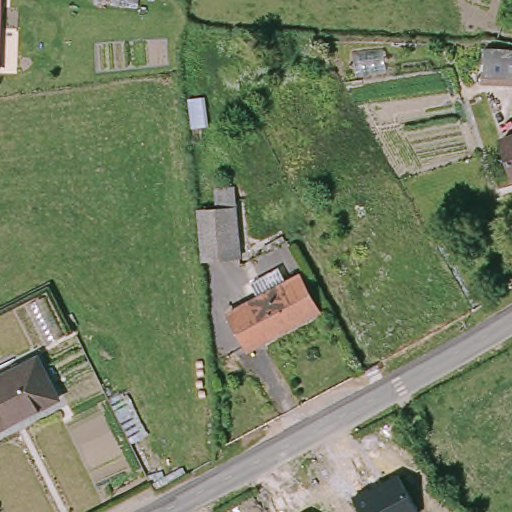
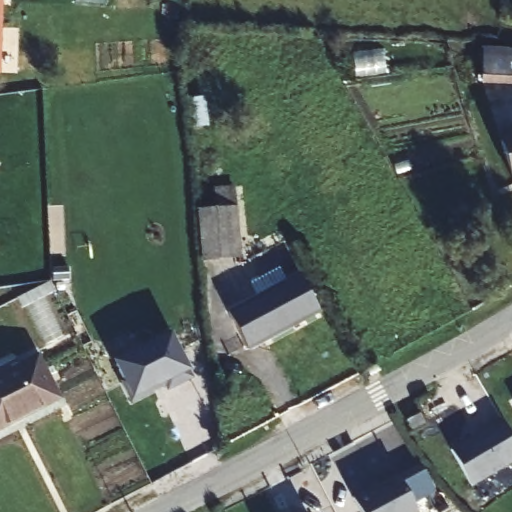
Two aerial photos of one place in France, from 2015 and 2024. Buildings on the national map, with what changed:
unchanged [(512,54),(512,86),(482,81),(488,49),(512,54)]
unchanged [(512,137),(512,171),(505,139),(512,137)]
unchanged [(193,266),(193,217),(208,216),(208,187),(229,189),(229,265),(193,266)]
unchanged [(319,310),(253,352),(233,318),(259,302),(253,289),(281,270),(289,283),(300,275),(319,310)]
new [(169,332),(189,371),(193,378),(167,392),(163,385),(131,401),(111,361),(169,332)]
unchanged [(36,353),(59,398),(0,429),(0,372),(36,353)]
new [(502,421),(512,438),(512,464),(472,487),(450,450),(502,421)]
unchanged [(361,512),(352,495),(397,473),(418,512),(361,512)]

